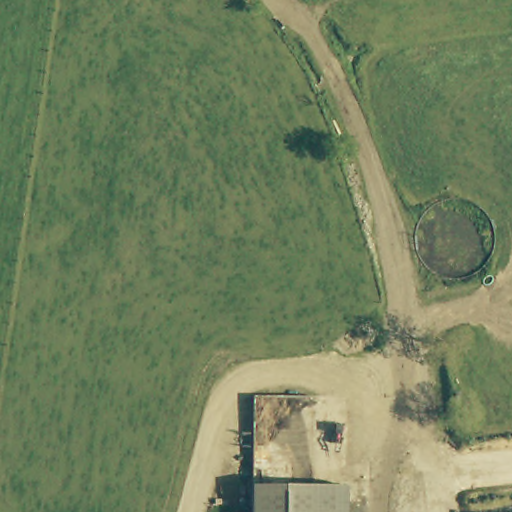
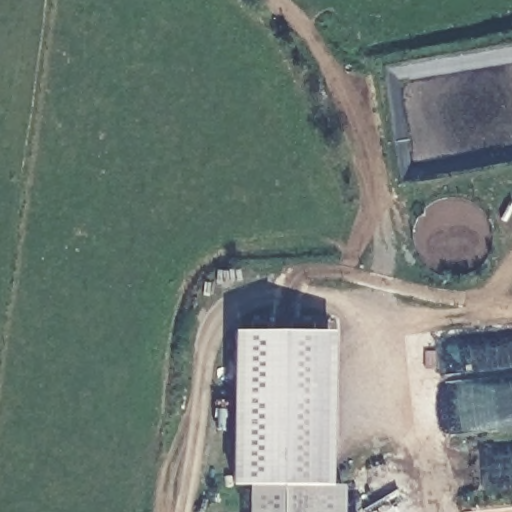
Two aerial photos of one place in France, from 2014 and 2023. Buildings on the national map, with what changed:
new [(256,481),(232,481),(234,330),(335,331),(332,483),(256,481)]
unchanged [(256,481),(348,484),(346,512),(256,512),(256,481)]

